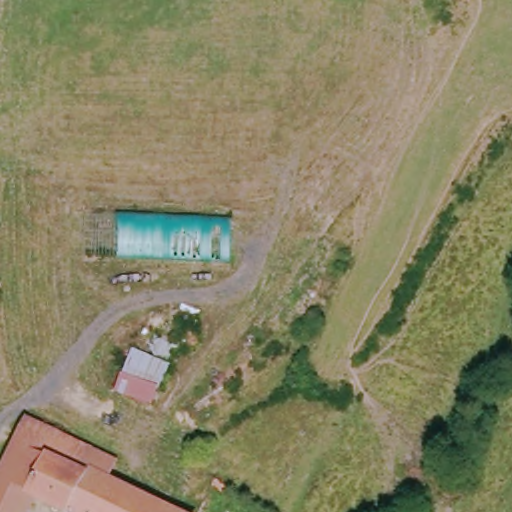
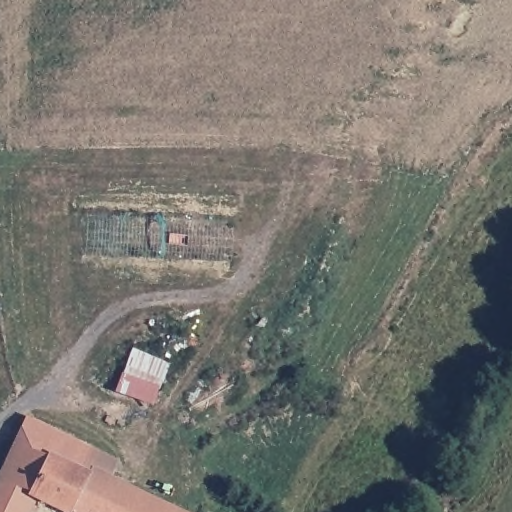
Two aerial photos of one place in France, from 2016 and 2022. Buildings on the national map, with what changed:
unchanged [(85,218),(226,224),(225,262),(84,259),(85,218)]
unchanged [(109,391),(129,350),(167,368),(148,407),(109,391)]
unchanged [(82,469),(78,479),(6,447),(18,417),(111,455),(102,479),(82,469)]
unchanged [(78,479),(82,469),(102,479),(176,512),(56,512),(23,497),(17,512),(0,512),(0,460),(6,447),(78,479)]

